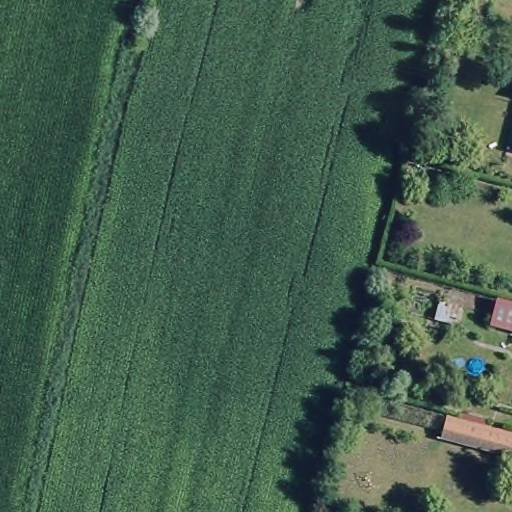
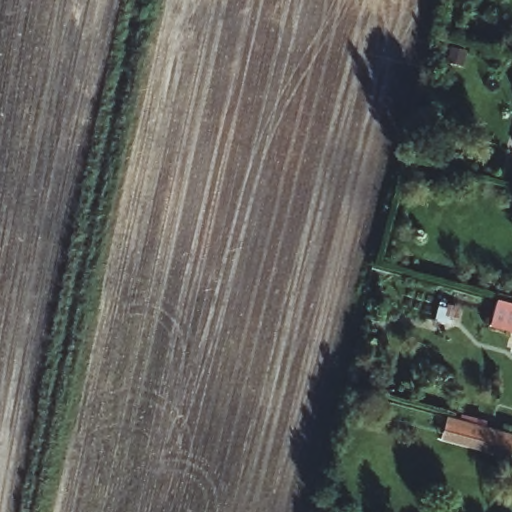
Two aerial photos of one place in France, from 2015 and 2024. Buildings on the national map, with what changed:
unchanged [(511,164),(512,160),(512,164),(511,164)]
unchanged [(512,306),(512,333),(490,327),(498,301),(512,306)]
unchanged [(512,440),(512,459),(452,444),(457,425),(512,440)]

